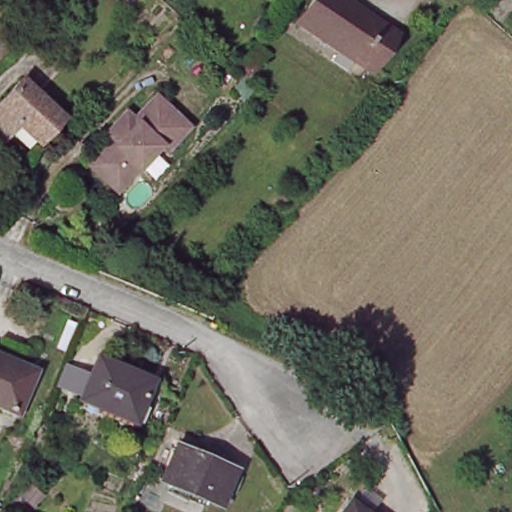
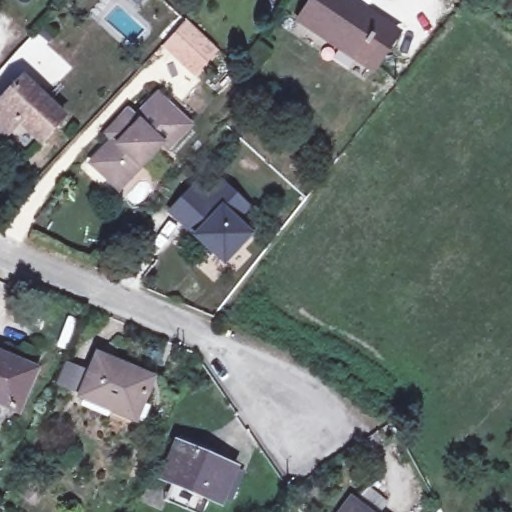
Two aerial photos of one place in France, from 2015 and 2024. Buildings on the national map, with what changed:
unchanged [(397,31),(370,69),(300,17),(312,0),(356,0),(397,31)]
unchanged [(237,68),(259,45),(272,56),(250,80),(237,68)]
unchanged [(46,139),(24,118),(9,134),(0,126),(0,102),(25,77),(67,117),(46,139)]
unchanged [(121,184),(99,163),(120,141),(115,135),(137,112),(145,120),(167,98),(198,128),(177,150),(171,145),(149,168),(127,191),(121,184)]
new [(210,168),(251,206),(240,219),(254,232),(222,265),(165,211),(210,168)]
unchanged [(154,370),(137,412),(130,410),(124,424),(89,410),(112,354),(154,370)]
unchanged [(32,373),(16,415),(0,409),(0,360),(32,373)]
unchanged [(230,468),(215,503),(164,479),(178,446),(230,468)]
unchanged [(349,512),(355,506),(362,512),(349,512)]

